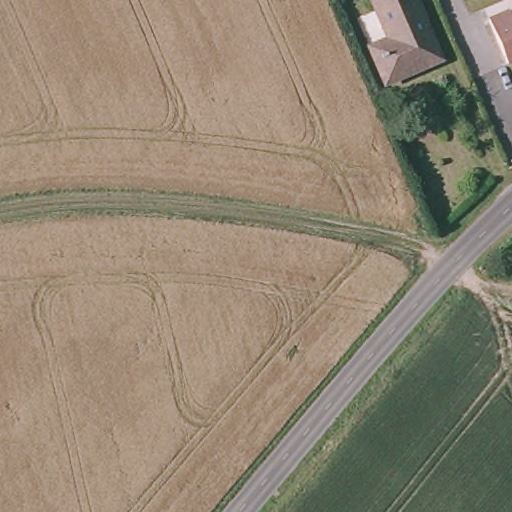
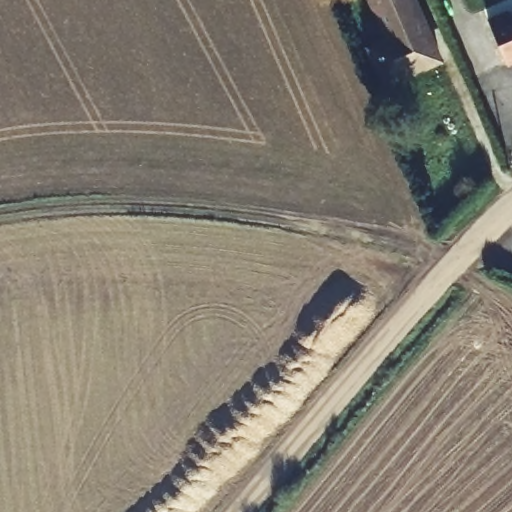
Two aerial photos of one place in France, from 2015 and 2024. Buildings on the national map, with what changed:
unchanged [(435,71),(394,85),(360,0),(406,0),(435,71)]
unchanged [(512,9),(512,62),(511,63),(491,17),(512,8),(512,9)]

